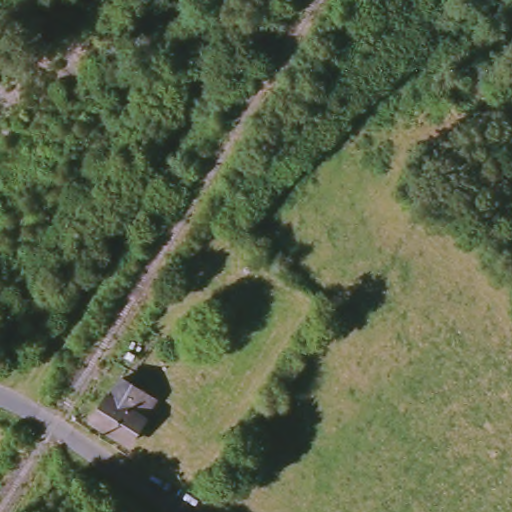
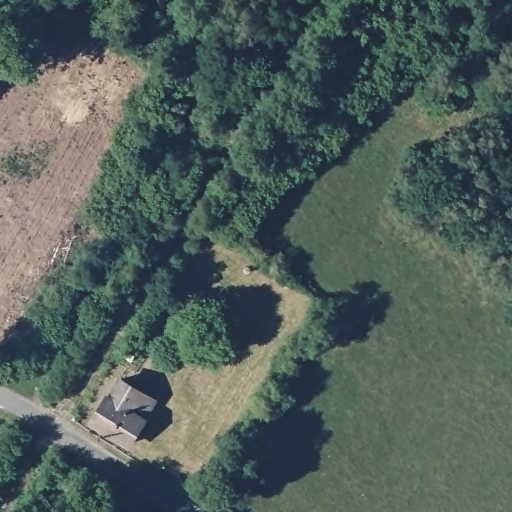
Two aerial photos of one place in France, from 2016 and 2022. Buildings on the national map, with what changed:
unchanged [(158,403),(132,447),(95,425),(109,397),(114,401),(125,382),(158,403)]

